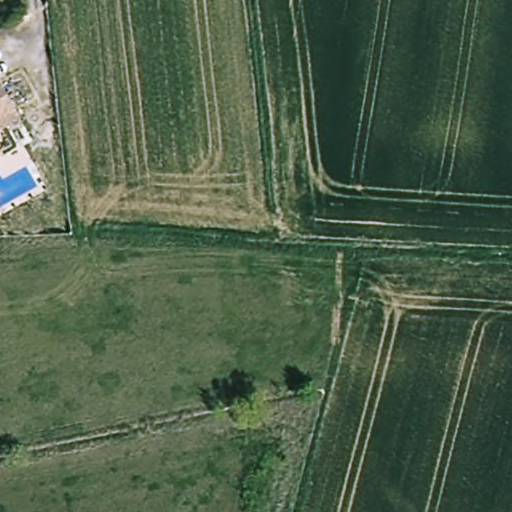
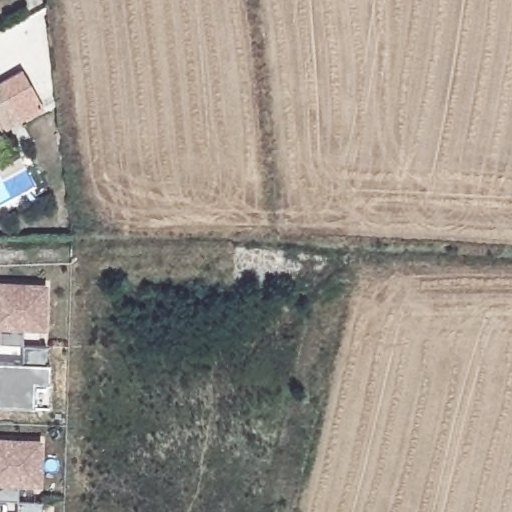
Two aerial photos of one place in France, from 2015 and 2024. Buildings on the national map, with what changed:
unchanged [(4,82),(19,110),(0,120),(0,84),(4,82)]
new [(47,283),(45,328),(23,327),(23,343),(0,343),(0,282),(47,283)]
new [(22,362),(23,343),(47,344),(46,362),(50,362),(50,382),(35,381),(34,406),(0,406),(0,361),(22,362)]
new [(41,440),(40,484),(19,483),(18,500),(0,499),(0,438),(41,440)]
new [(41,500),(41,512),(17,512),(18,500),(41,500)]

